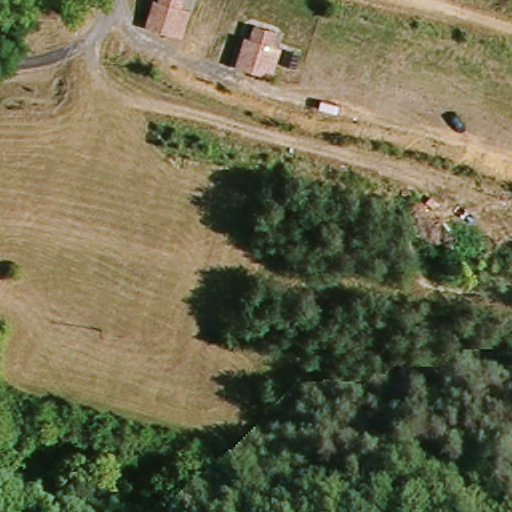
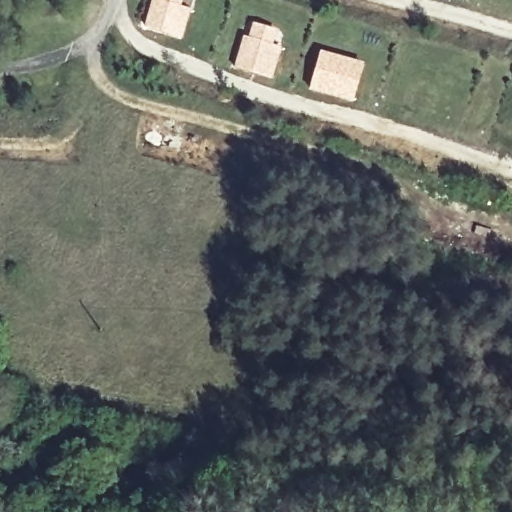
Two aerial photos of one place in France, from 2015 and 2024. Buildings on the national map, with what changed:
unchanged [(159,0),(183,0),(181,6),(190,9),(182,37),(145,26),(153,0),(157,0),(159,0)]
unchanged [(251,39),(256,22),(277,29),(273,44),(282,48),(272,77),(235,65),(243,37),(251,39)]
new [(320,49),(365,61),(353,101),(307,89),(320,49)]

